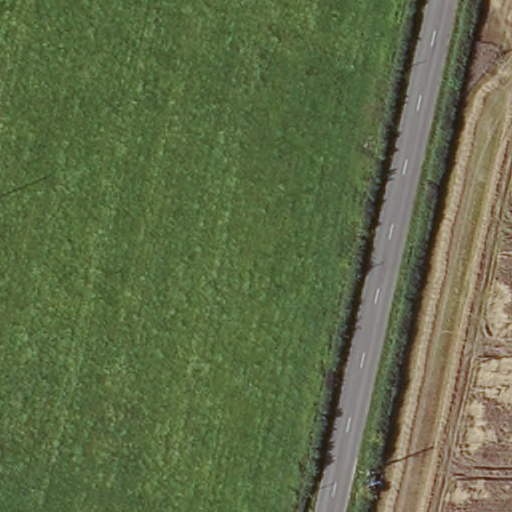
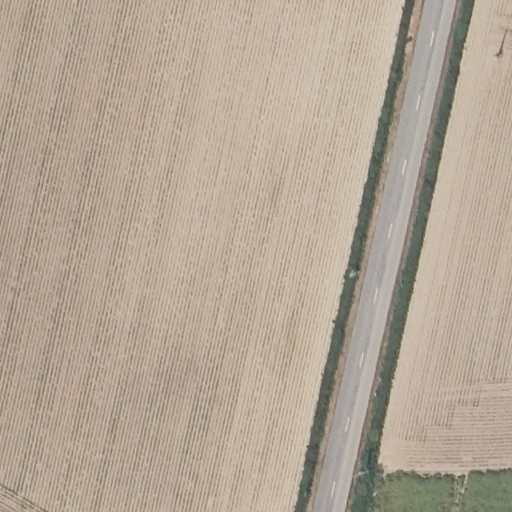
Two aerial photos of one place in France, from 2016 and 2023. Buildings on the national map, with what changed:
[]

